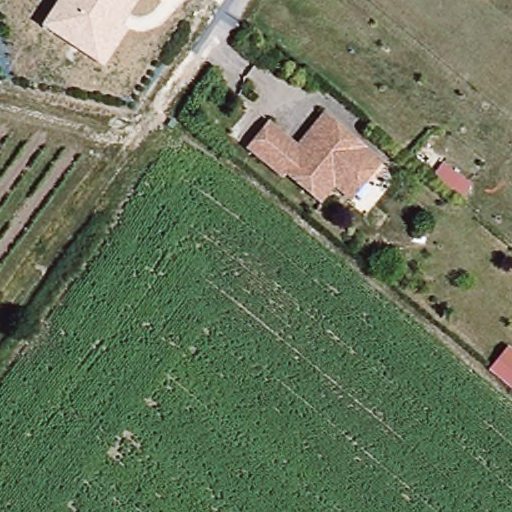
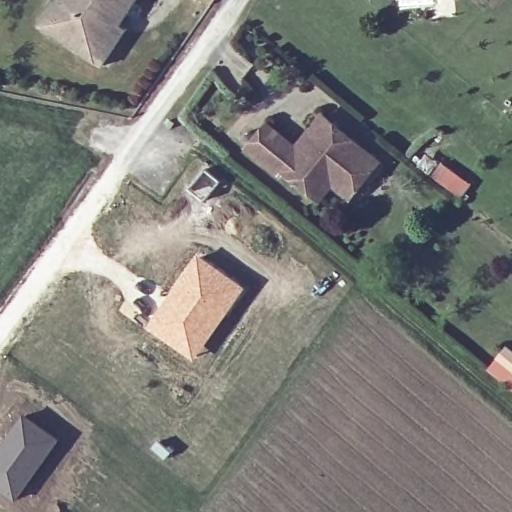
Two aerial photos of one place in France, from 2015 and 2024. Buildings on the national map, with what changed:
unchanged [(127,29),(103,67),(40,25),(56,0),(139,0),(122,25),(127,29)]
unchanged [(333,182),(320,198),(284,170),(281,174),(247,147),(267,122),(295,145),(307,130),(321,113),(378,158),(367,173),(350,194),(333,182)]
new [(199,252),(249,285),(197,361),(147,326),(199,252)]
new [(488,370),(508,345),(512,349),(512,389),(488,370)]
new [(62,438),(17,502),(0,489),(0,447),(24,413),(62,438)]

